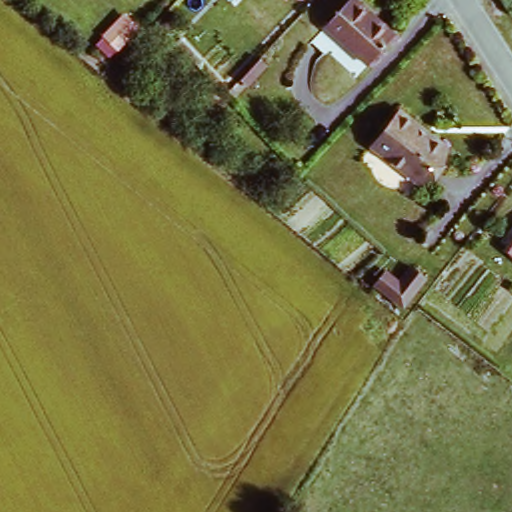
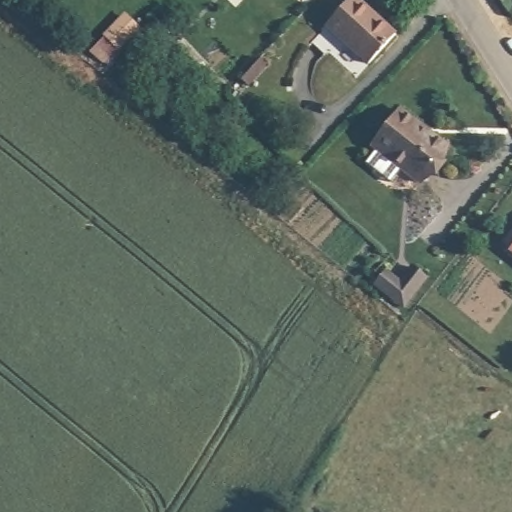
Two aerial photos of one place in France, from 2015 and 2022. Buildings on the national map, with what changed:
unchanged [(369,59),(330,23),(353,0),(359,0),(394,33),(369,59)]
unchanged [(420,179),(375,142),(400,113),(444,149),(420,179)]
unchanged [(436,268),(447,283),(417,304),(396,276),(410,266),(420,280),(436,268)]

